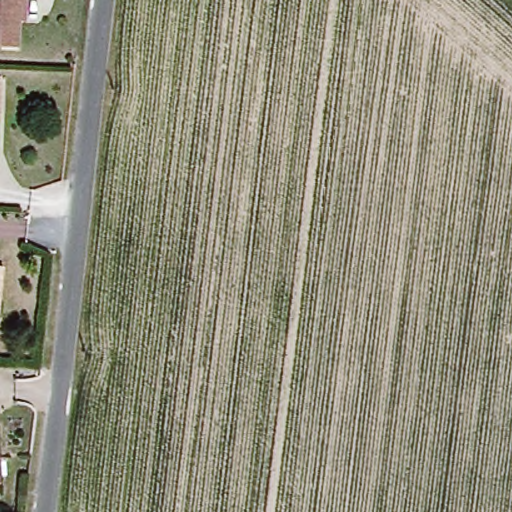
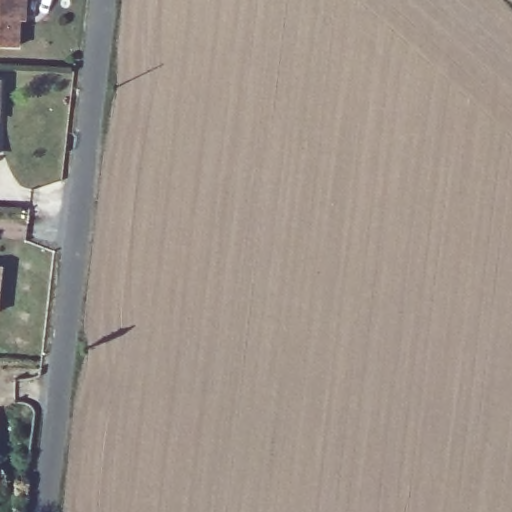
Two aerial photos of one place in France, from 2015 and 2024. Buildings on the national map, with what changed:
unchanged [(0,0),(22,0),(21,24),(15,23),(14,52),(0,52),(0,0)]

